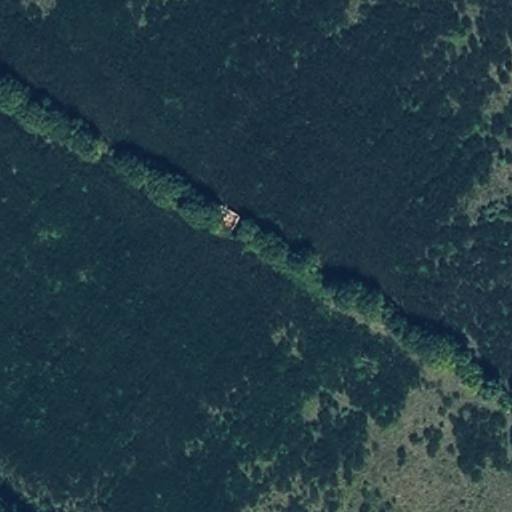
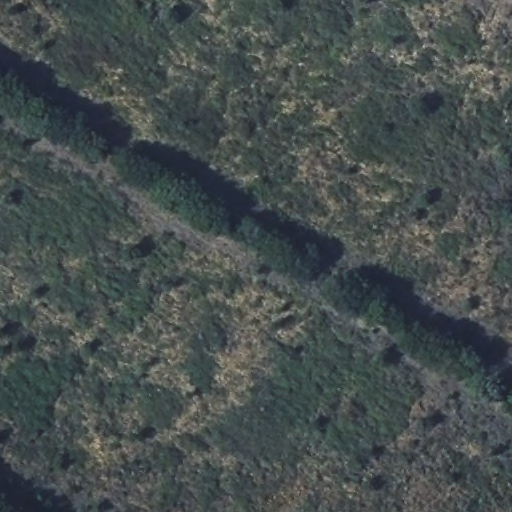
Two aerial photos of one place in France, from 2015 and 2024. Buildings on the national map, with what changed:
unchanged [(243,218),(231,234),(214,225),(223,208),(243,218)]

